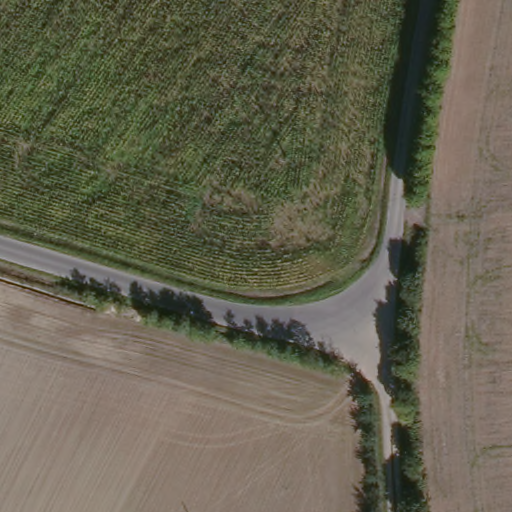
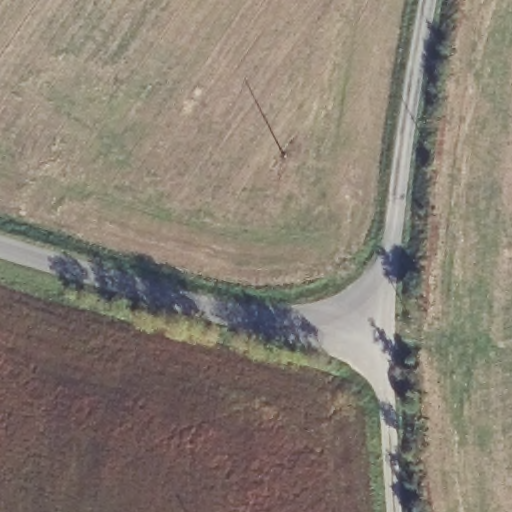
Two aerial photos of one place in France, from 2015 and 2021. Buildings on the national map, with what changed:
[]

